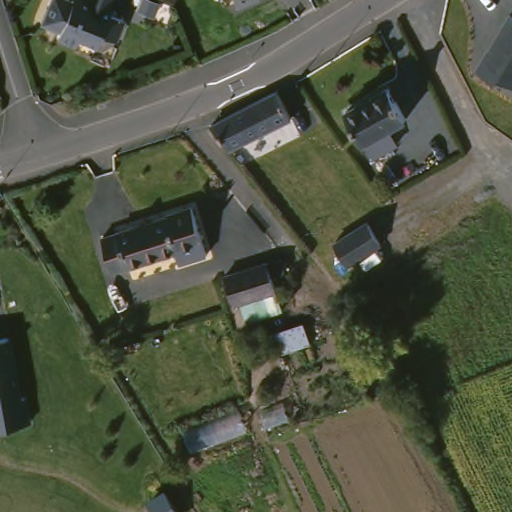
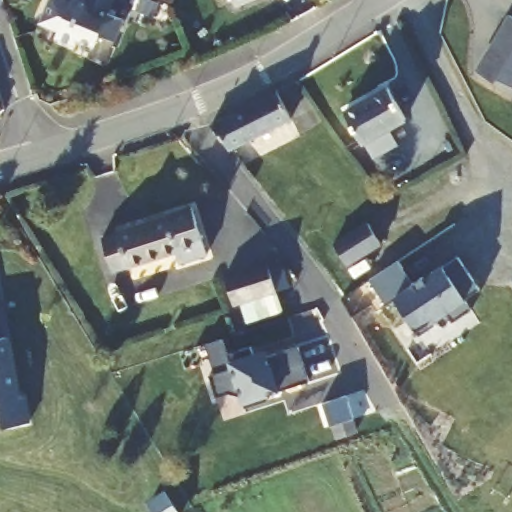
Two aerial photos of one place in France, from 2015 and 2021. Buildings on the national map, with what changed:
unchanged [(84,4),(85,0),(118,0),(110,20),(125,27),(116,47),(100,41),(96,52),(79,44),(75,51),(57,42),(60,36),(41,27),(53,0),(56,0),(72,7),(81,3),(84,4)]
unchanged [(257,2),(240,8),(237,0),(256,0),(257,2)]
unchanged [(495,84),(491,81),(477,72),(482,65),(510,17),(512,17),(512,87),(498,79),(495,84)]
unchanged [(385,88),(402,119),(360,142),(342,112),(385,88)]
unchanged [(290,119),(227,149),(209,126),(275,92),(290,119)]
unchanged [(165,219),(164,216),(191,207),(205,254),(179,262),(176,252),(111,272),(100,239),(165,219)]
unchanged [(380,247),(347,268),(333,247),(366,226),(380,247)]
new [(395,263),(410,285),(419,280),(421,282),(454,260),(475,294),(461,303),(467,314),(448,326),(441,315),(428,324),(431,328),(415,338),(391,301),(383,307),(366,281),(395,263)]
unchanged [(275,291),(234,306),(224,277),(265,264),(275,291)]
new [(512,284),(509,281),(512,278),(512,284)]
unchanged [(10,340),(21,401),(27,400),(32,425),(0,432),(0,342),(10,340)]
new [(232,367),(228,355),(251,347),(254,355),(260,359),(296,347),(306,382),(264,395),(266,400),(242,407),(239,396),(229,393),(217,397),(210,375),(232,367)]
unchanged [(178,512),(151,512),(144,500),(163,488),(178,512)]

